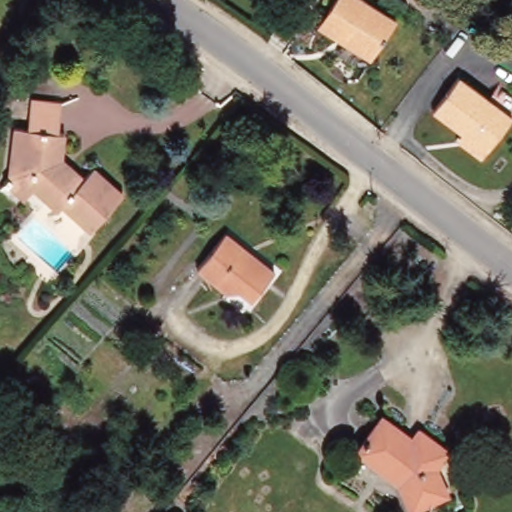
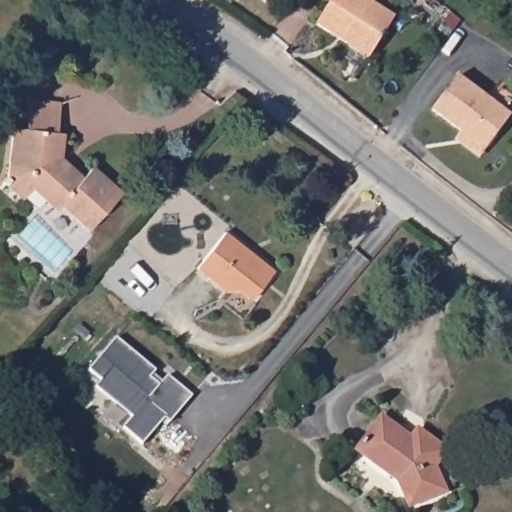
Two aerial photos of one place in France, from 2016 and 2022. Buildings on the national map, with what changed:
unchanged [(369,62),(316,26),(334,0),(361,0),(395,23),(369,62)]
unchanged [(460,133),(431,108),(461,75),(492,102),(504,88),(512,95),(512,116),(481,152),(477,157),(456,138),(460,133)]
unchanged [(12,181),(10,181),(7,133),(22,133),(20,102),(50,101),(52,131),(60,130),(62,156),(64,157),(71,163),(85,174),(93,164),(123,189),(90,227),(61,202),(56,207),(35,189),(24,202),(7,188),(12,181)]
unchanged [(249,298),(238,289),(224,289),(194,264),(223,228),(240,243),(249,250),(272,269),(249,298)]
new [(115,341),(155,374),(150,381),(159,388),(167,378),(191,399),(170,426),(164,421),(142,448),(122,432),(131,421),(95,391),(100,384),(88,374),(115,341)]
unchanged [(440,469),(450,494),(412,510),(400,483),(361,455),(385,421),(416,441),(421,432),(451,452),(440,469)]

